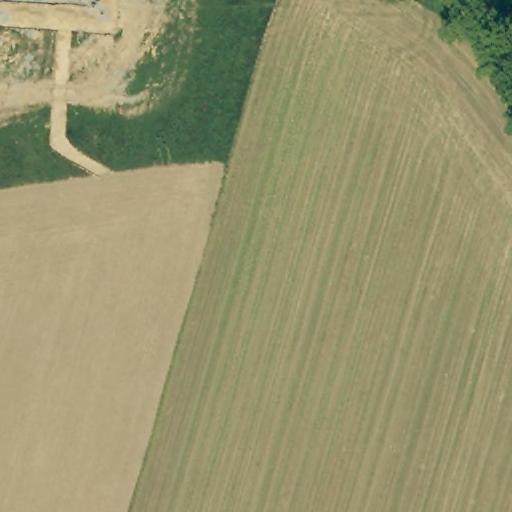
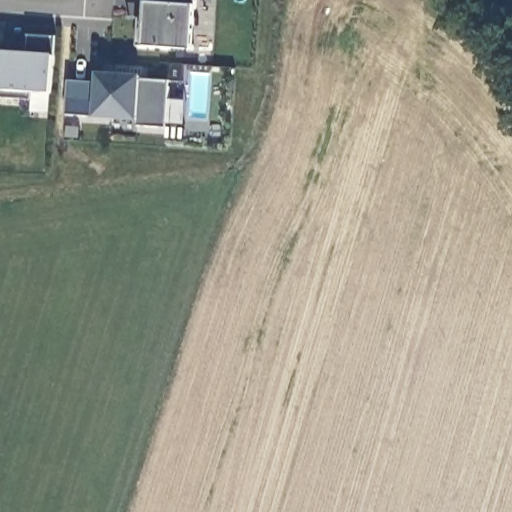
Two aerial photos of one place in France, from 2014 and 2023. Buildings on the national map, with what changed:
new [(195,7),(192,50),(145,46),(148,5),(148,0),(196,0),(196,4),(195,7)]
unchanged [(54,56),(54,55),(51,94),(34,93),(31,100),(0,98),(0,92),(0,91),(2,52),(30,53),(29,36),(55,38),(54,56)]
new [(166,128),(139,126),(139,121),(95,119),(95,115),(66,116),(68,82),(97,81),(98,74),(142,76),(142,81),(169,82),(166,128)]

